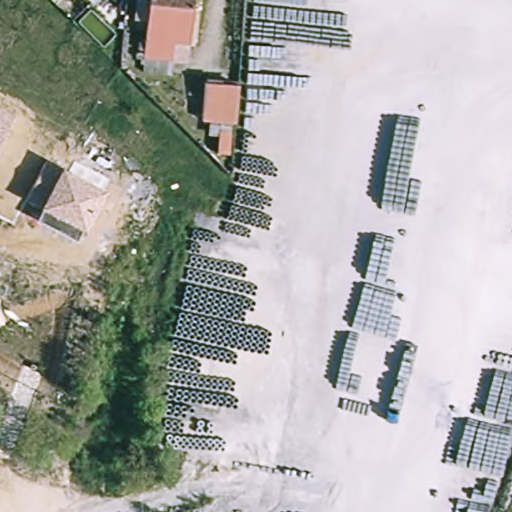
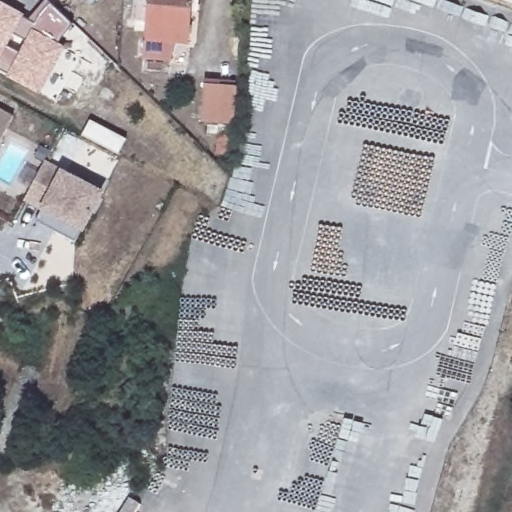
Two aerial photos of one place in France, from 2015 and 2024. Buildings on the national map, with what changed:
new [(0,69),(0,1),(25,15),(23,18),(29,20),(48,0),(72,24),(61,37),(59,43),(66,46),(40,95),(7,76),(9,74),(0,69)]
unchanged [(198,0),(196,39),(177,39),(175,59),(147,56),(152,0),(198,0)]
unchanged [(205,124),(207,84),(239,87),(236,127),(205,124)]
unchanged [(0,137),(0,108),(13,115),(0,137)]
unchanged [(106,193),(84,230),(77,241),(38,220),(40,206),(27,200),(44,166),(63,169),(106,193)]

